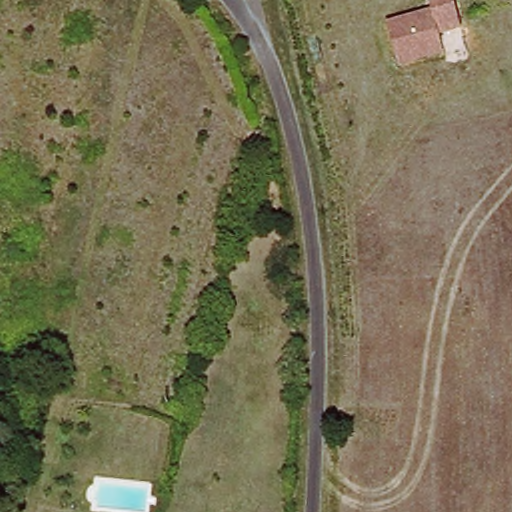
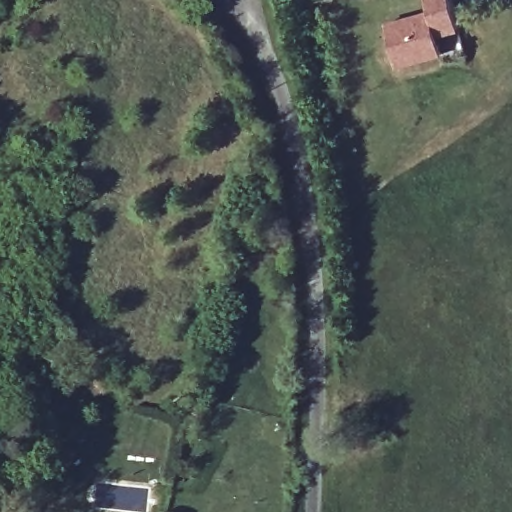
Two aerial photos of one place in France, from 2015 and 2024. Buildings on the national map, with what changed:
unchanged [(461,32),(440,37),(445,57),(398,68),(387,22),(431,11),(429,0),(453,0),(461,32)]

